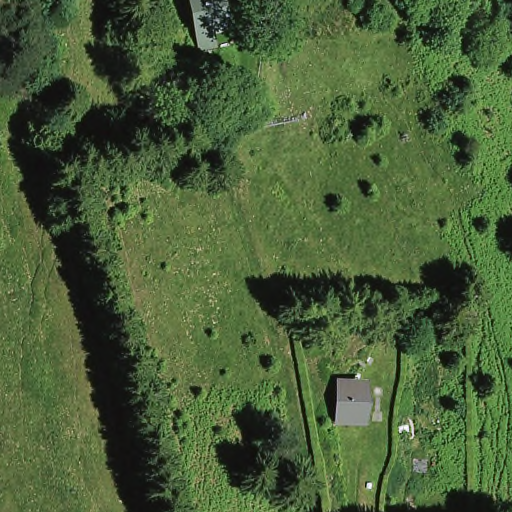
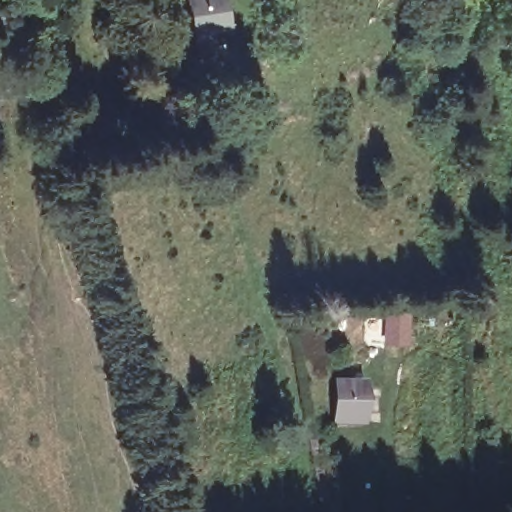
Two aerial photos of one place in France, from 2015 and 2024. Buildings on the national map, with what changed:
unchanged [(198,26),(193,0),(223,0),(227,21),(209,24),(212,45),(202,47),(198,26)]
unchanged [(331,418),(338,377),(374,379),(369,420),(331,418)]

